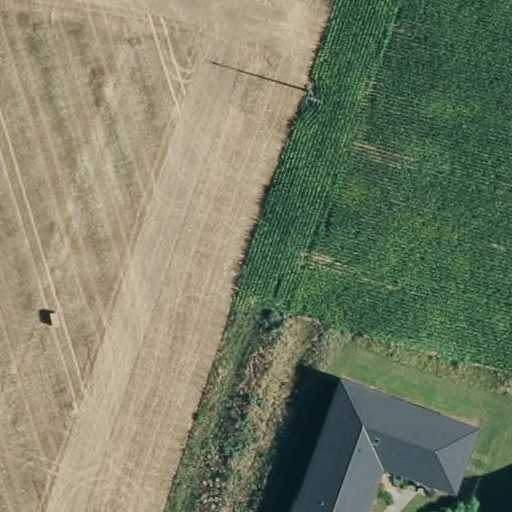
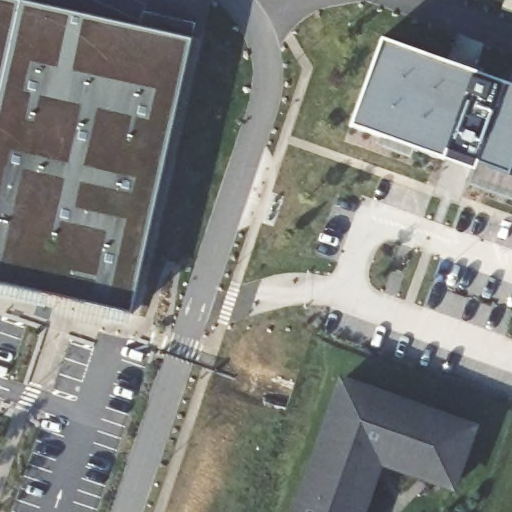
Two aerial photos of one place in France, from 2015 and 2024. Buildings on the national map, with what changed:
new [(142,13),(195,25),(131,311),(0,283),(0,0),(14,0),(137,27),(142,13)]
new [(512,2),(512,13),(501,9),(504,0),(507,0),(512,2)]
new [(512,85),(512,197),(466,182),(475,166),(446,153),(443,160),(351,126),(382,38),(512,85)]
unchanged [(299,500),(341,381),(473,428),(452,487),(385,464),(384,461),(376,465),(377,468),(362,512),(290,512),(295,499),(299,500)]

